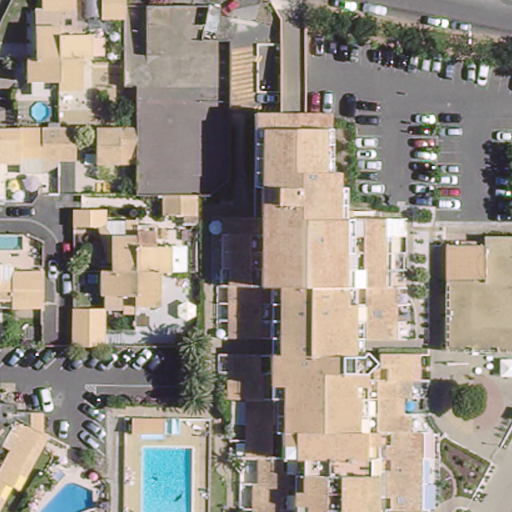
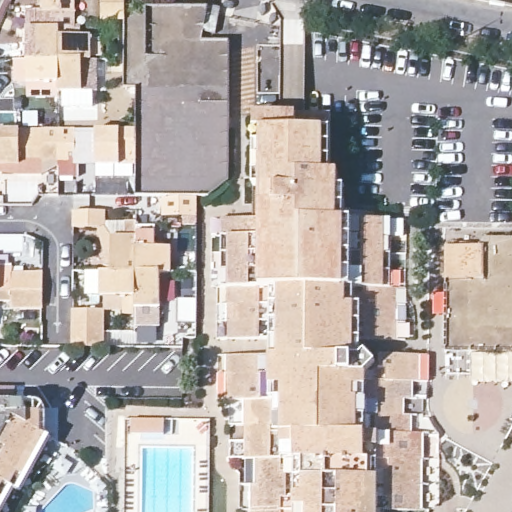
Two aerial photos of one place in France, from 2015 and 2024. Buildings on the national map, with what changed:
unchanged [(75,15),(43,15),(43,0),(76,0),(75,15)]
unchanged [(220,183),(188,209),(188,229),(153,228),(154,208),(129,208),(130,166),(85,165),(86,133),(129,134),(130,100),(118,100),(119,23),(98,23),(99,0),(135,0),(132,8),(201,12),(202,8),(215,11),(210,37),(196,34),(192,49),(222,55),(221,118),(220,183)]
unchanged [(87,62),(78,62),(78,92),(57,92),(57,84),(26,84),(26,61),(37,61),(37,33),(58,34),(57,43),(88,43),(87,62)]
unchanged [(251,446),(246,445),(245,427),(245,408),(245,389),(242,389),(235,389),(234,367),(234,347),(240,347),(275,347),(280,347),(280,330),(275,330),(240,330),(234,329),(233,311),(232,292),(232,274),(222,274),(222,256),(222,240),(222,221),(221,205),(230,205),(254,205),(254,108),(331,108),(332,144),(331,145),(331,157),(339,158),(339,172),(348,173),(349,196),(358,196),(358,203),(361,203),(364,203),(367,203),(374,203),(388,203),(395,203),(395,221),(394,221),(396,239),(395,239),(396,256),(397,273),(398,293),(398,312),(398,330),(392,330),(352,330),(352,349),(359,349),(364,343),(372,351),(366,357),(366,372),(367,373),(387,373),(387,358),(378,358),(378,351),(378,345),(399,345),(409,345),(416,345),(416,373),(409,372),(402,373),(402,389),(402,407),(402,428),(410,428),(415,428),(415,452),(415,479),(415,506),(410,506),(378,505),(378,512),(342,512),(341,473),(327,473),(328,512),(288,512),(288,490),(282,490),(282,506),(282,512),(257,512),(257,506),(256,478),(256,452),(258,452),(258,445),(251,446)]
unchanged [(65,165),(29,165),(28,161),(5,161),(6,166),(0,166),(0,133),(65,134),(65,165)]
unchanged [(104,231),(74,231),(74,215),(104,216),(104,231)]
unchanged [(480,228),(488,228),(488,221),(512,221),(512,346),(449,346),(450,246),(450,230),(480,231),(480,228)]
unchanged [(138,306),(138,312),(128,312),(128,296),(107,296),(108,273),(116,273),(116,241),(129,241),(129,234),(140,234),(140,244),(149,244),(149,252),(172,252),(172,275),(160,275),(160,307),(138,306)]
unchanged [(11,292),(11,276),(41,276),(40,309),(11,309),(11,305),(0,305),(0,292),(11,292)]
unchanged [(97,349),(66,348),(67,312),(98,313),(97,349)]
unchanged [(14,483),(0,509),(0,398),(19,398),(19,408),(44,408),(44,429),(50,432),(21,486),(14,483)]
unchanged [(167,438),(135,437),(135,422),(168,422),(167,438)]

